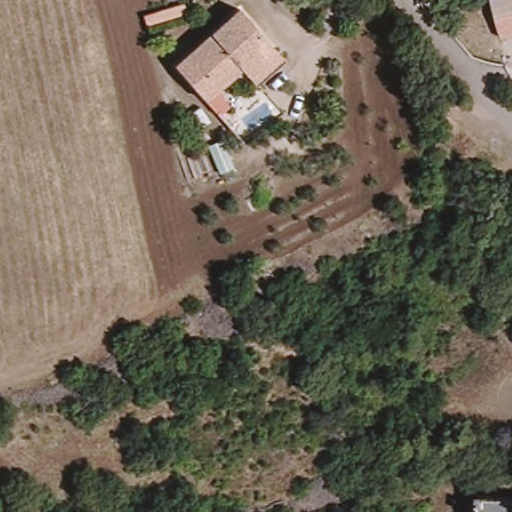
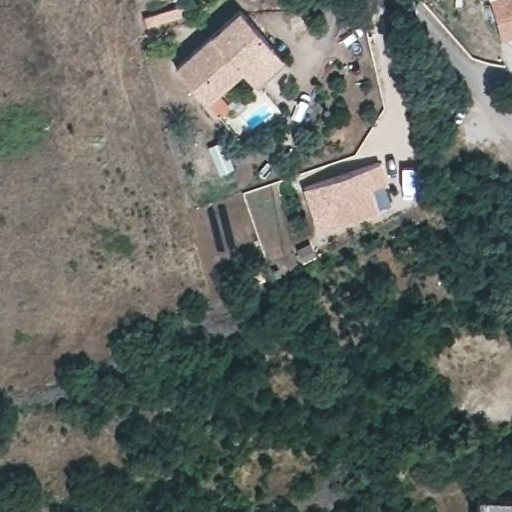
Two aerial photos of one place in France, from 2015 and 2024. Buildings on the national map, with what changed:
unchanged [(138,19),(136,6),(160,0),(177,0),(180,9),(138,19)]
unchanged [(492,0),(512,0),(512,35),(499,38),(492,0)]
unchanged [(257,82),(244,69),(238,61),(210,84),(224,101),(214,110),(173,61),(240,6),(273,45),(284,59),(257,82)]
new [(379,161),(386,182),(382,183),(389,203),(315,228),(301,186),(379,161)]
unchanged [(485,489),(512,490),(512,512),(485,512),(485,489)]

